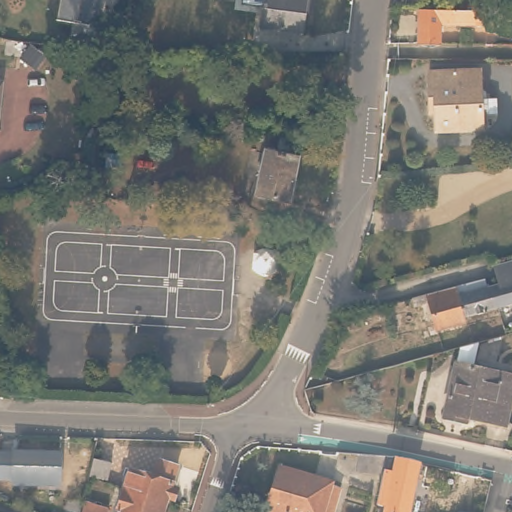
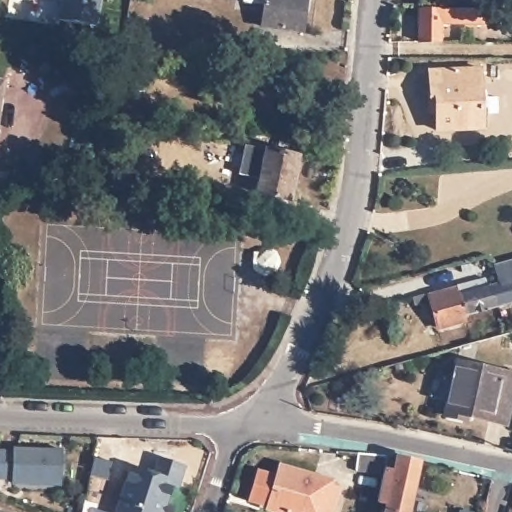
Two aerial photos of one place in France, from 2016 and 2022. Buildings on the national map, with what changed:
unchanged [(93,36),(90,49),(67,44),(70,31),(56,28),(61,0),(100,0),(94,36),(93,36)]
unchanged [(301,44),(260,38),(265,1),(258,0),(308,0),(307,6),(301,44)]
unchanged [(436,14),(435,33),(412,33),(413,0),(493,0),(493,15),(436,14)]
unchanged [(429,100),(428,82),(479,81),(480,110),(495,110),(496,125),(480,125),(480,139),(435,140),(435,122),(430,122),(429,100)]
unchanged [(150,123),(150,135),(129,131),(130,120),(150,123)]
unchanged [(298,164),(289,207),(255,201),(265,157),(298,164)]
unchanged [(247,248),(268,249),(277,263),(268,276),(245,276),(247,248)]
unchanged [(490,286),(487,275),(511,268),(512,268),(512,311),(493,317),(492,313),(486,294),(492,293),(490,286)]
unchanged [(492,313),(493,317),(458,327),(460,330),(431,338),(424,310),(408,314),(406,307),(420,303),(480,289),(481,296),(486,294),(492,313)]
unchanged [(461,368),(465,352),(482,347),(476,371),(512,379),(512,417),(510,429),(471,421),(470,426),(449,421),(461,368)]
unchanged [(61,479),(11,478),(12,476),(0,474),(0,448),(14,448),(14,444),(61,446),(61,479)]
unchanged [(115,453),(107,479),(90,474),(97,448),(115,453)]
unchanged [(397,462),(416,465),(411,488),(414,489),(409,512),(386,512),(388,500),(378,497),(379,494),(382,478),(355,475),(355,457),(385,460),(383,474),(393,475),(397,462)]
unchanged [(130,495),(137,471),(156,477),(160,465),(182,471),(170,508),(130,495)]
unchanged [(331,481),(330,483),(340,486),(334,510),(328,508),(327,512),(280,512),(268,508),(279,468),(331,481)]
unchanged [(170,508),(169,512),(125,512),(130,495),(170,508)]
unchanged [(92,512),(88,512),(88,511),(92,512)]

